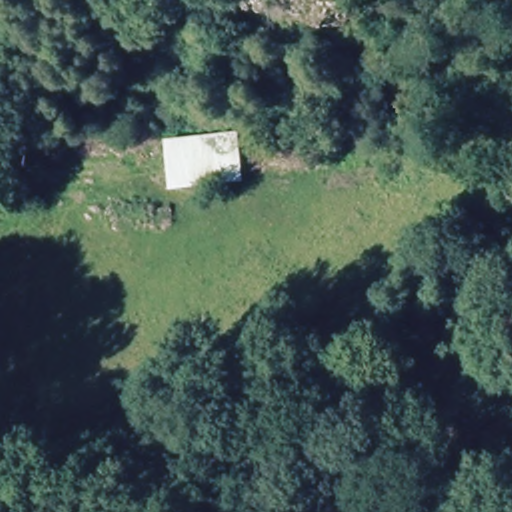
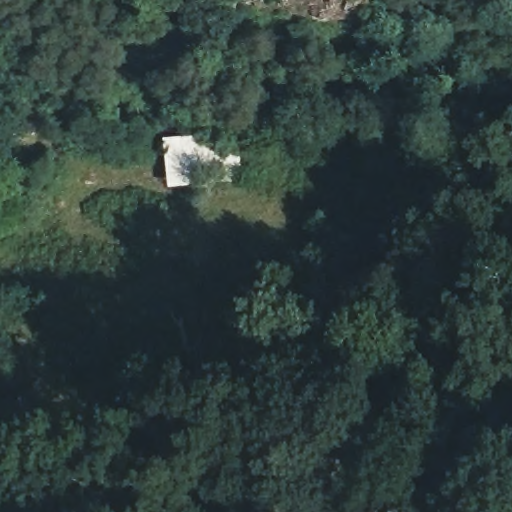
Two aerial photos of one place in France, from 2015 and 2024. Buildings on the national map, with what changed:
unchanged [(163,137),(238,132),(244,181),(168,187),(163,137)]

